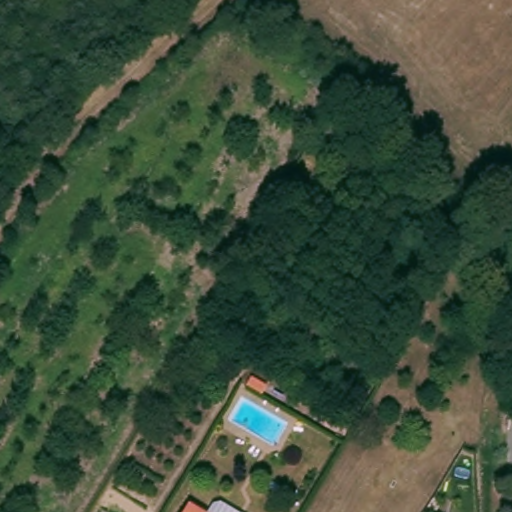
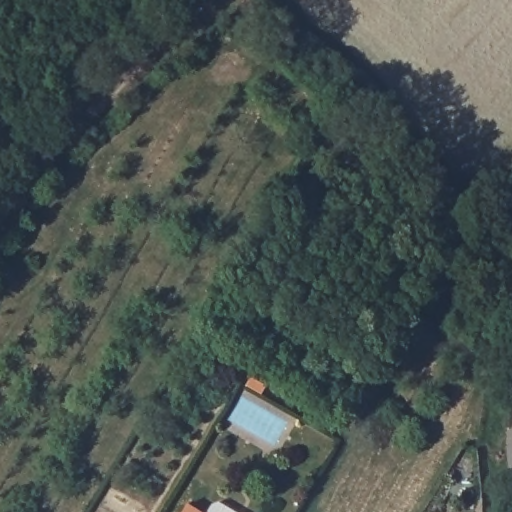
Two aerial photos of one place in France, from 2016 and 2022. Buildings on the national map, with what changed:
unchanged [(272,384),(266,395),(249,385),(256,374),(272,384)]
unchanged [(202,512),(182,512),(187,503),(202,512)]
unchanged [(222,505),(233,512),(210,512),(212,508),(222,505)]

